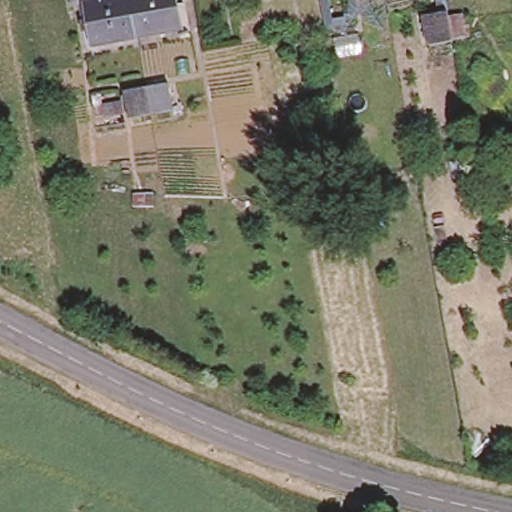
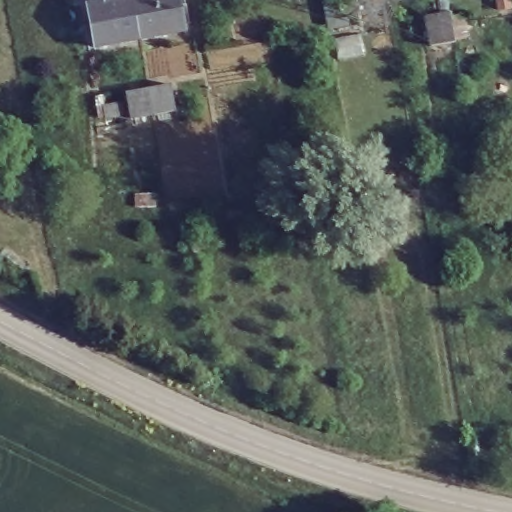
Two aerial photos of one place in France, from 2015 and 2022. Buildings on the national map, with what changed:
unchanged [(82,0),(174,0),(178,31),(136,39),(90,46),(83,5),(82,0)]
unchanged [(450,18),(465,14),(468,39),(427,49),(422,17),(448,11),(450,18)]
unchanged [(177,109),(128,117),(127,114),(107,119),(104,106),(126,101),(125,91),(172,82),(177,109)]

